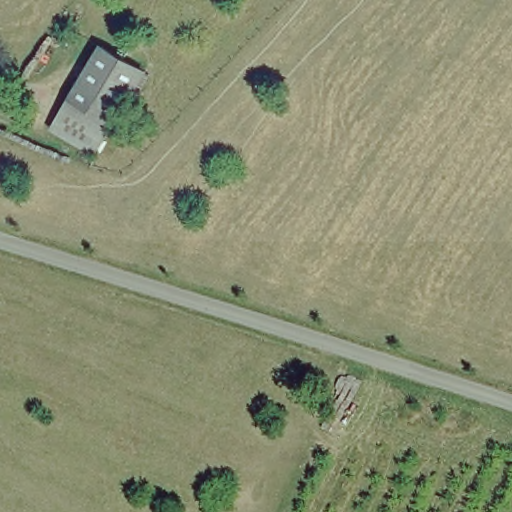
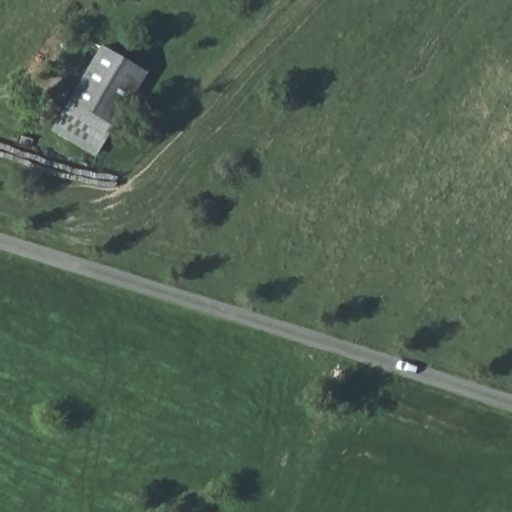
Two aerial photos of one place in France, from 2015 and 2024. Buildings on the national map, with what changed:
unchanged [(98,152),(55,125),(100,48),(143,74),(98,152)]

